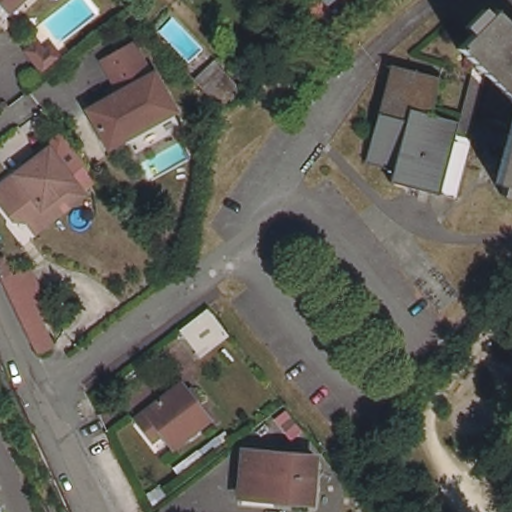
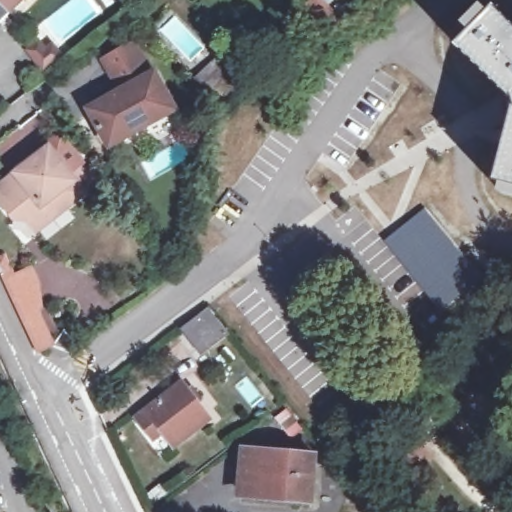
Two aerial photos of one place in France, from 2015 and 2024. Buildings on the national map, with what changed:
unchanged [(0,0),(16,0),(0,16),(0,0)]
unchanged [(494,77),(480,62),(462,43),(476,29),(493,12),(500,4),(512,16),(512,95),(494,77)]
unchanged [(110,88),(117,84),(103,57),(132,41),(150,72),(154,70),(175,108),(109,145),(87,107),(112,94),(110,88)]
demolished [(444,72),(435,108),(464,116),(459,129),(442,191),(393,177),(396,164),(368,156),(395,59),(444,72)]
unchanged [(222,107),(197,79),(214,64),(240,93),(222,107)]
unchanged [(482,121),(510,129),(512,121),(512,182),(508,181),(497,177),(507,142),(479,134),(459,129),(464,116),(482,121)]
unchanged [(34,229),(26,219),(12,217),(0,201),(0,182),(47,147),(81,192),(34,229)]
new [(424,206),(489,281),(443,316),(382,240),(424,206)]
unchanged [(15,241),(2,247),(0,241),(0,219),(4,217),(15,241)]
unchanged [(3,276),(0,270),(0,256),(9,274),(3,276)]
unchanged [(9,274),(27,266),(34,281),(11,292),(4,277),(9,274)]
unchanged [(210,307),(230,332),(205,352),(185,327),(210,307)]
unchanged [(37,313),(51,345),(41,351),(25,318),(37,313)]
unchanged [(211,412),(173,442),(163,427),(152,435),(135,411),(184,374),(211,412)]
unchanged [(275,423),(287,413),(301,431),(288,441),(275,423)]
unchanged [(311,500),(254,495),(242,494),(246,448),(257,449),(315,454),(311,500)]
unchanged [(0,491),(5,512),(0,512),(0,491)]

